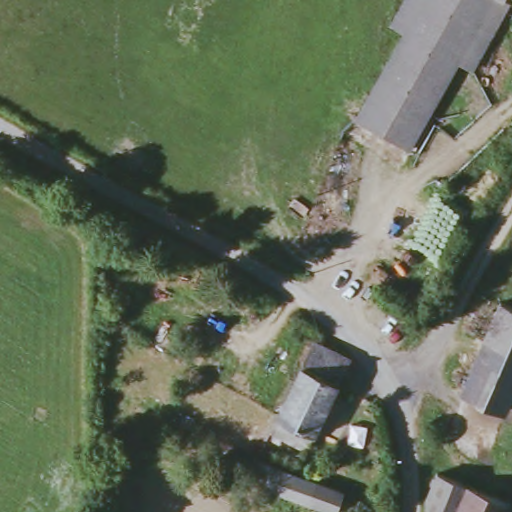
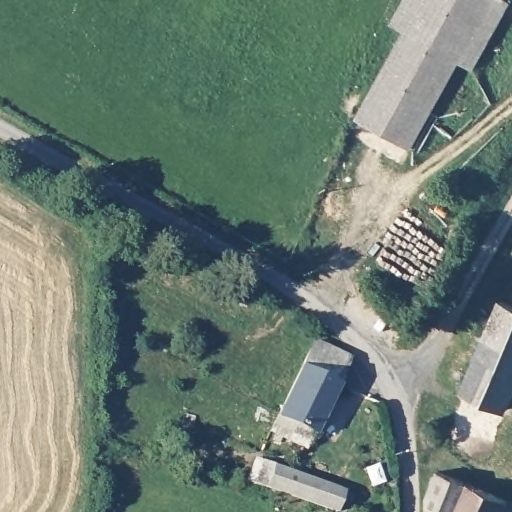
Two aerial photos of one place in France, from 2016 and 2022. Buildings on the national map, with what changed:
unchanged [(470,67),(457,60),(410,148),(353,117),(399,30),(389,24),(402,0),(504,0),(470,67)]
unchanged [(512,388),(503,410),(463,393),(500,295),(512,300),(512,388)]
unchanged [(347,350),(306,437),(271,420),(311,333),(347,350)]
unchanged [(342,490),(336,512),(334,512),(256,486),(262,469),(271,472),(274,466),(342,490)]
unchanged [(433,498),(442,470),(507,494),(500,512),(431,512),(433,498)]

